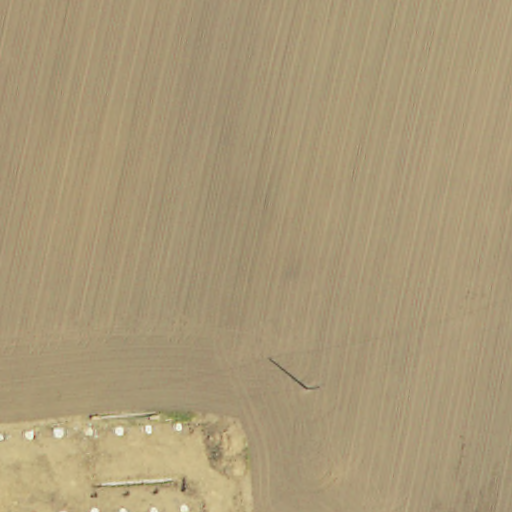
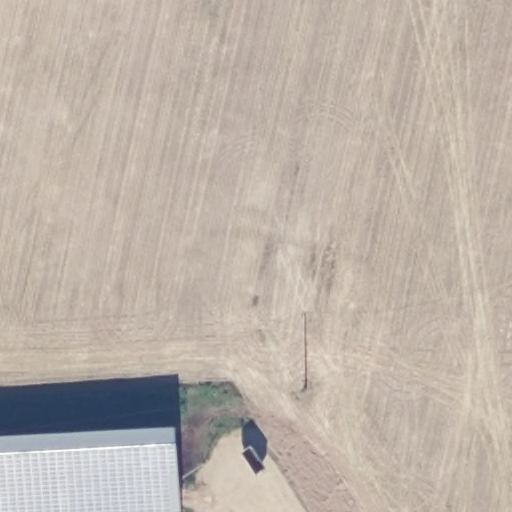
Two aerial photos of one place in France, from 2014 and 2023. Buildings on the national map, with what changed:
new [(184,511),(165,512),(0,512),(0,435),(179,425),(180,441),(184,511)]

